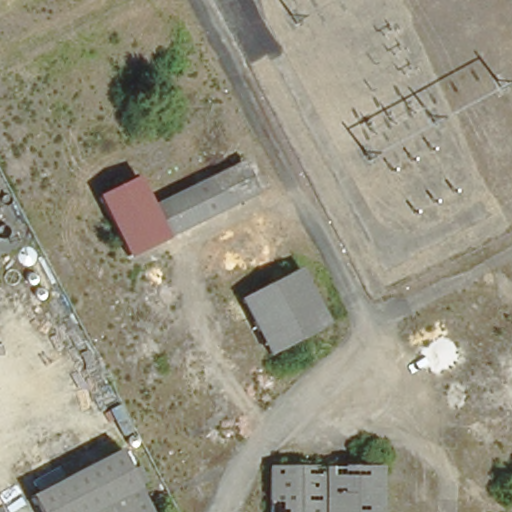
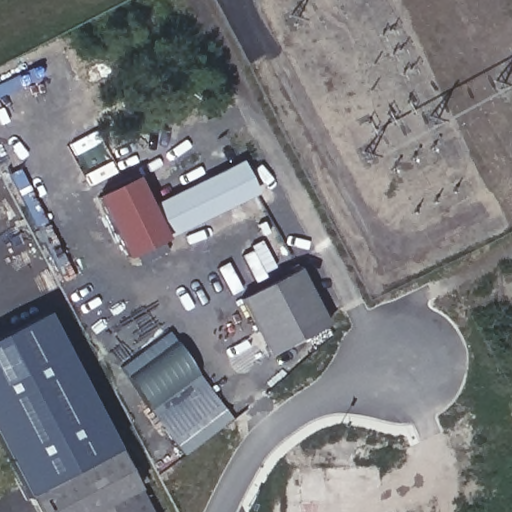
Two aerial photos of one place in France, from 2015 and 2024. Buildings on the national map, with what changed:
unchanged [(154,206),(244,161),(258,191),(170,236),(129,257),(97,197),(137,176),(154,206)]
unchanged [(328,322),(270,353),(240,301),(300,269),(328,322)]
new [(27,497),(0,442),(0,335),(47,312),(117,450),(27,497)]
new [(120,367),(170,331),(234,420),(185,456),(120,367)]
unchanged [(151,512),(36,512),(27,497),(117,450),(151,512)]
unchanged [(270,473),(270,471),(383,470),(383,512),(270,512),(270,473)]

